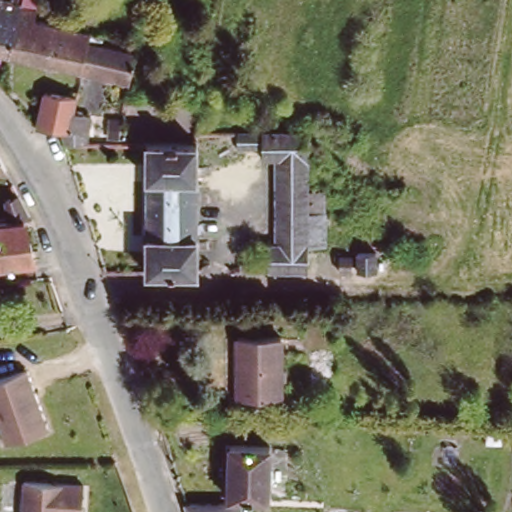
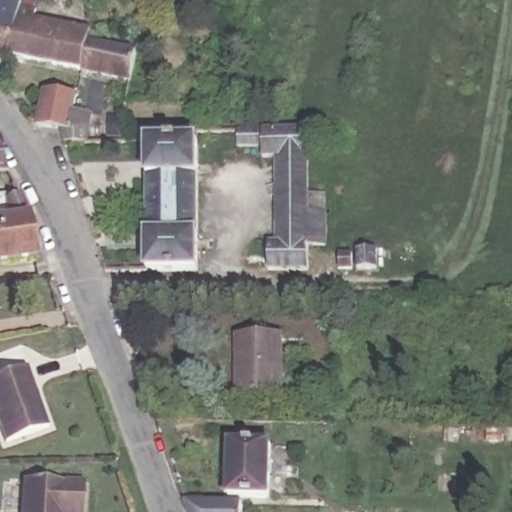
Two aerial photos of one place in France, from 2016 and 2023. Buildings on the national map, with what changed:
unchanged [(0,55),(0,0),(12,3),(0,55)]
unchanged [(76,70),(0,55),(12,3),(13,0),(27,0),(25,9),(28,9),(26,18),(84,31),(83,32),(82,41),(76,70)]
unchanged [(130,54),(126,70),(125,80),(76,70),(82,41),(130,51),(130,54)]
unchanged [(57,138),(36,136),(35,135),(40,109),(41,100),(75,106),(73,121),(87,123),(86,139),(57,138)]
unchanged [(312,141),(312,159),(282,159),(267,159),(267,149),(242,149),(242,134),(243,134),(253,133),(312,132),(312,141)]
unchanged [(146,142),(195,142),(195,181),(147,180),(146,142)]
unchanged [(11,172),(0,171),(0,151),(11,172)]
unchanged [(328,240),(328,247),(312,248),(312,252),(312,273),(265,274),(252,274),(252,262),(271,262),(271,244),(281,244),(281,225),(282,159),(312,159),(311,188),(328,188),(328,213),(328,238),(328,240)]
unchanged [(147,180),(195,181),(198,270),(147,270),(147,180)]
unchanged [(4,216),(13,214),(10,206),(24,199),(36,221),(31,222),(38,265),(0,270),(0,226),(5,225),(4,216)]
unchanged [(358,250),(377,251),(377,269),(368,269),(358,269),(358,250)]
unchanged [(338,256),(352,256),(352,269),(338,269),(338,256)]
unchanged [(290,394),(249,396),(248,385),(245,348),(245,336),(286,333),(287,349),(290,386),(290,394)]
unchanged [(0,428),(0,377),(27,367),(48,428),(5,443),(0,428)]
unchanged [(232,438),(270,438),(270,491),(231,491),(232,438)]
unchanged [(82,484),(81,512),(22,512),(23,481),(82,484)]
unchanged [(255,508),(242,508),(242,512),(192,512),(186,496),(255,497),(255,508)]

